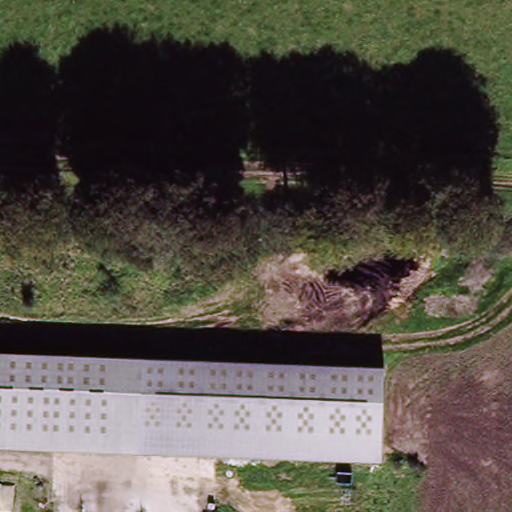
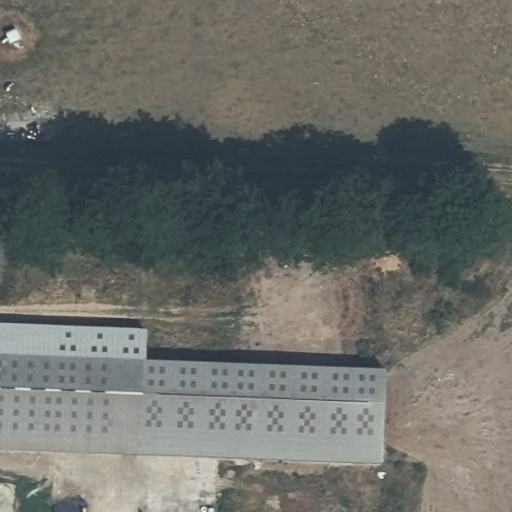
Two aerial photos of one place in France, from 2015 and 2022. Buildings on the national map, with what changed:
new [(0,322),(146,328),(150,366),(0,362),(0,322)]
unchanged [(143,456),(0,451),(0,362),(150,366),(143,456)]
unchanged [(381,465),(143,456),(150,366),(384,371),(381,465)]

